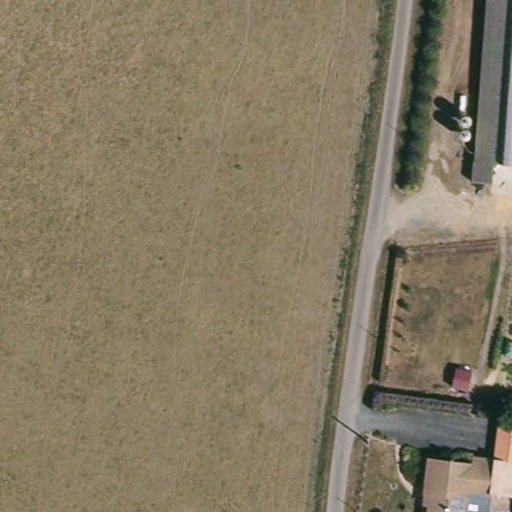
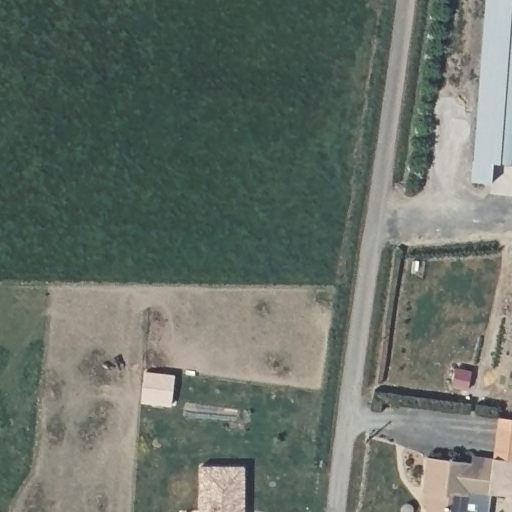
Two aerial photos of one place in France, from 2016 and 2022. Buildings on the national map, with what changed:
unchanged [(496,182),(476,180),(477,160),(480,160),(492,0),(512,0),(512,163),(497,162),(496,182)]
new [(146,372),(176,377),(172,406),(142,402),(146,372)]
unchanged [(422,492),(427,457),(471,465),(473,455),(495,457),(500,425),(512,427),(512,502),(495,499),(492,512),(430,512),(432,494),(422,492)]
new [(245,467),(245,512),(200,512),(201,466),(245,467)]

